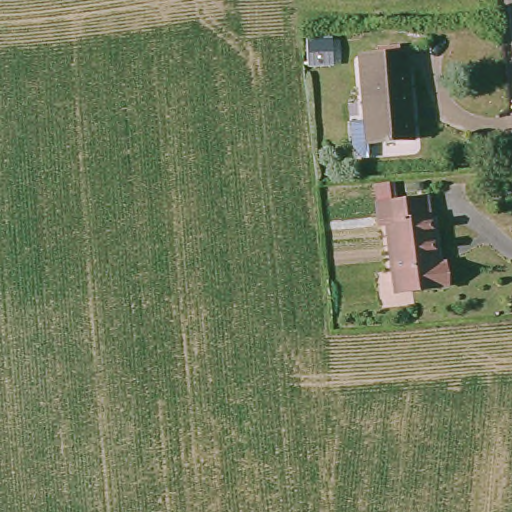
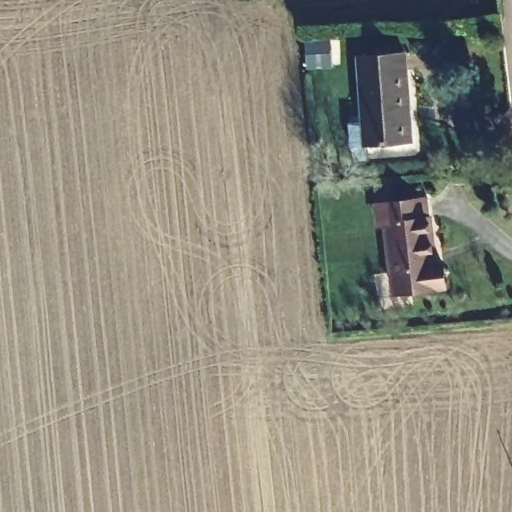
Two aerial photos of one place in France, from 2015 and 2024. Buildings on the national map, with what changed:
unchanged [(403,51),(413,138),(370,141),(360,56),(403,51)]
unchanged [(422,193),(424,214),(430,214),(435,258),(444,258),(445,283),(395,288),(387,218),(380,218),(378,198),(422,193)]

